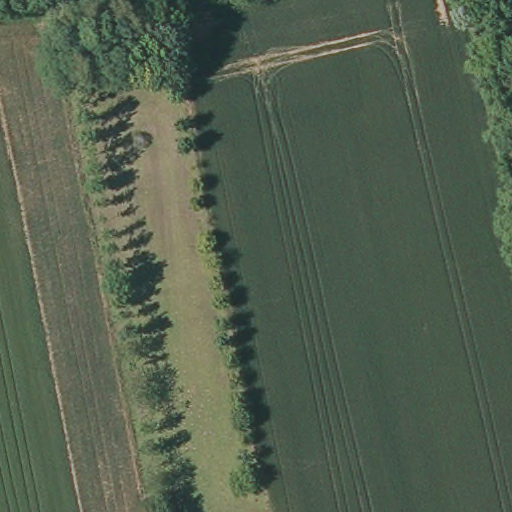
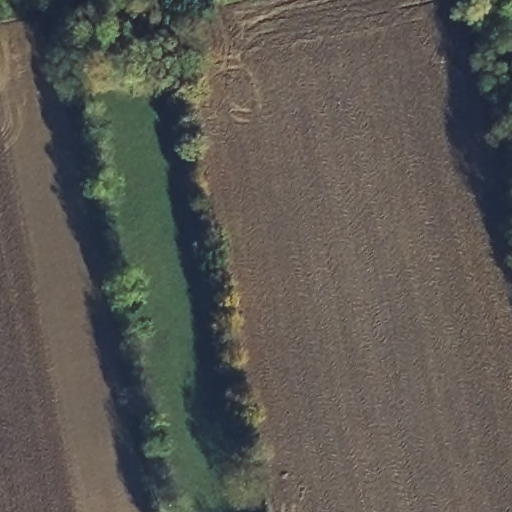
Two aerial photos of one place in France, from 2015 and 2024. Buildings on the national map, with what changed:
[]

